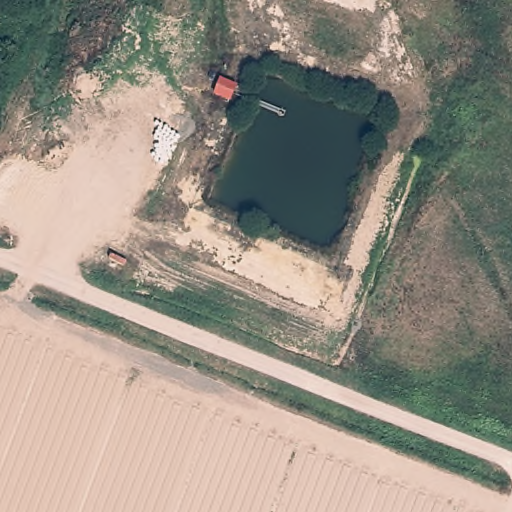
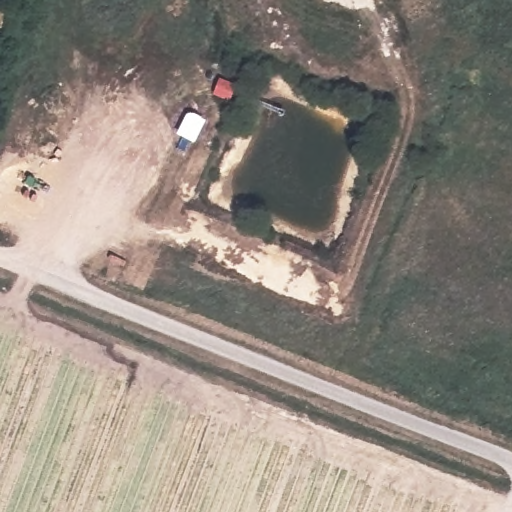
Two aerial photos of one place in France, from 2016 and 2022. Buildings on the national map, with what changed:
unchanged [(229,101),(215,96),(221,81),(235,86),(229,101)]

